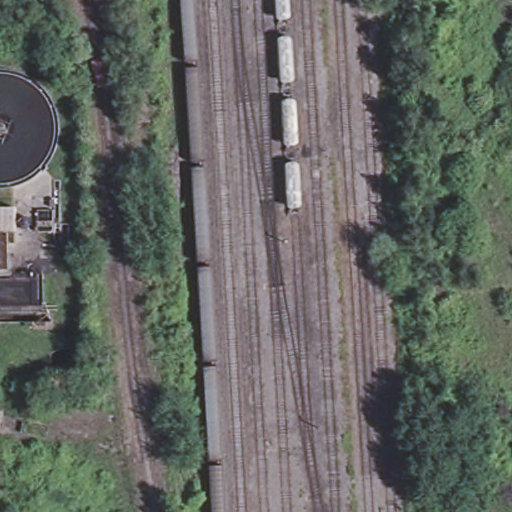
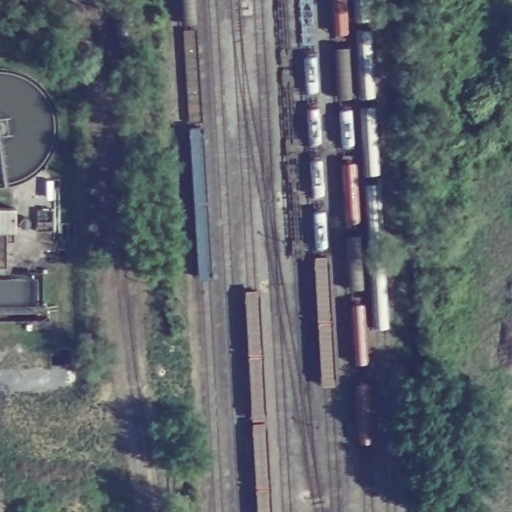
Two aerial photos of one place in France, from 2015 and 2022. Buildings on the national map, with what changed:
unchanged [(13,213),(13,237),(0,238),(0,213),(13,213)]

